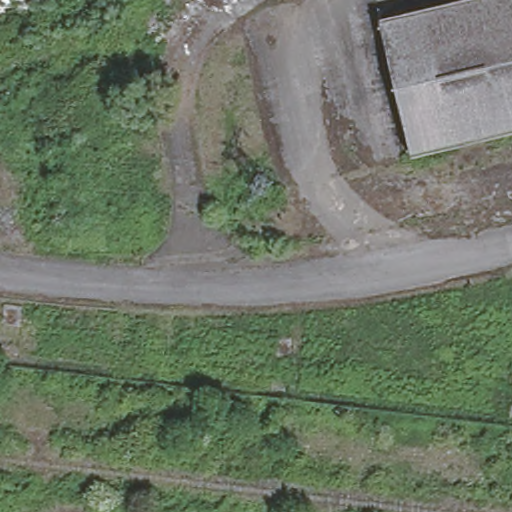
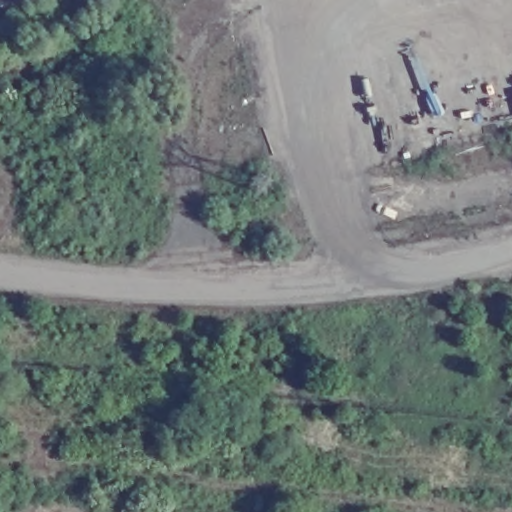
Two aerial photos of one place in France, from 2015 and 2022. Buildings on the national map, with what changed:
demolished [(387,14),(449,0),(512,0),(512,131),(417,152),(387,14)]

